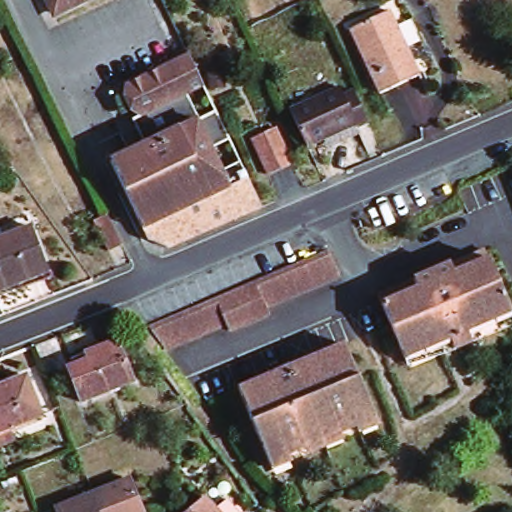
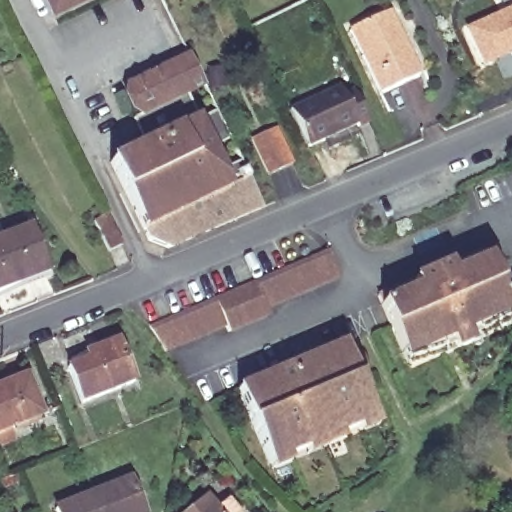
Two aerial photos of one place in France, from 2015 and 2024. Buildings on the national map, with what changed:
unchanged [(58,13),(52,0),(85,0),(58,13)]
new [(512,5),(512,53),(484,66),(465,25),(512,5)]
unchanged [(421,79),(382,99),(351,35),(391,15),(421,79)]
unchanged [(260,209),(167,250),(146,242),(108,163),(145,145),(132,119),(140,115),(126,85),(187,55),(260,209)]
unchanged [(366,125),(357,130),(355,128),(305,150),(287,110),(335,88),(340,98),(351,93),(366,125)]
unchanged [(296,161),(270,172),(255,138),(280,126),(296,161)]
unchanged [(120,247),(108,253),(93,223),(105,217),(120,247)]
unchanged [(0,240),(28,231),(45,275),(0,291),(0,240)]
unchanged [(339,276),(264,308),(266,313),(227,330),(225,325),(164,351),(148,327),(329,252),(339,276)]
unchanged [(512,312),(512,319),(470,337),(475,348),(457,356),(451,345),(407,364),(385,311),(492,267),(512,312)]
unchanged [(130,381),(81,400),(69,368),(85,361),(84,354),(115,342),(130,381)]
unchanged [(376,425),(357,434),(355,428),(339,434),(341,440),(305,455),(302,450),(286,456),(289,463),(270,470),(237,390),(343,346),(376,425)]
unchanged [(0,387),(25,378),(40,415),(0,430),(0,387)]
unchanged [(140,512),(100,512),(93,495),(128,482),(140,512)]
unchanged [(100,512),(56,512),(55,510),(93,495),(100,512)]
unchanged [(208,512),(199,512),(205,508),(208,512)]
unchanged [(227,512),(224,512),(226,511),(227,512)]

